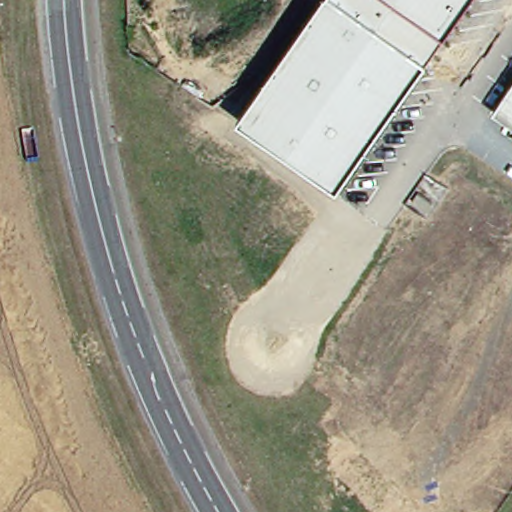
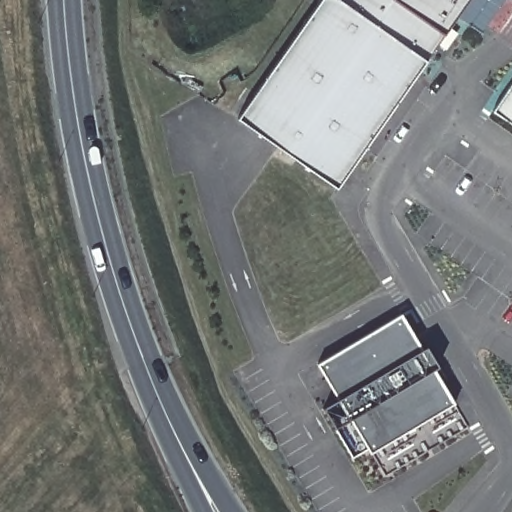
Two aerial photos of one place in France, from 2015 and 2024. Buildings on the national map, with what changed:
unchanged [(342,185),(242,114),(322,0),(472,0),(429,61),(342,185)]
unchanged [(512,73),(512,124),(489,108),(512,73)]
new [(452,401),(370,451),(319,364),(399,315),(452,401)]

